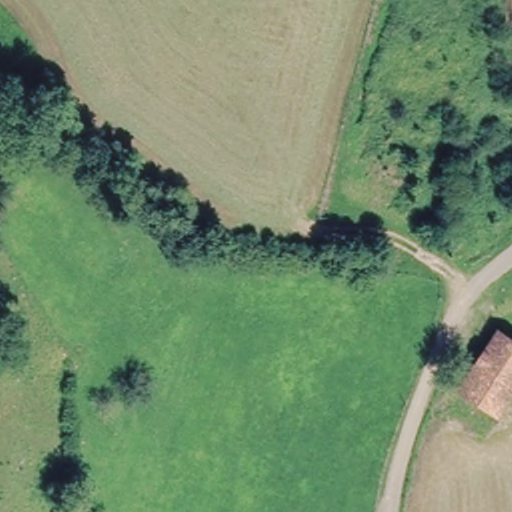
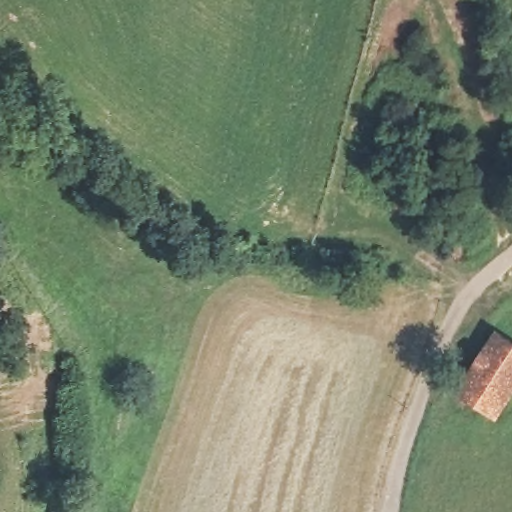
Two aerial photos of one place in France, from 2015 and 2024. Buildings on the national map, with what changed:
unchanged [(493,415),(454,390),(497,328),(512,338),(512,386),(493,415)]

